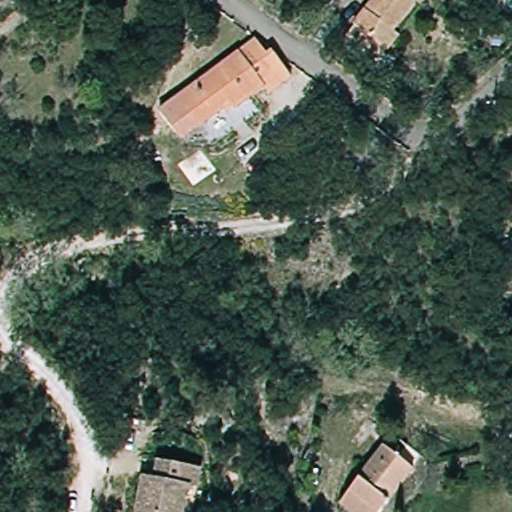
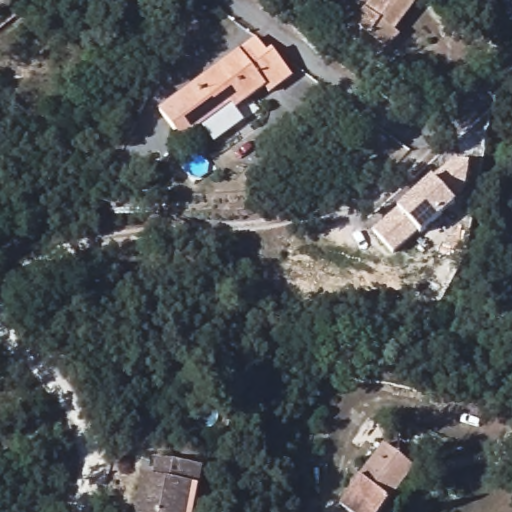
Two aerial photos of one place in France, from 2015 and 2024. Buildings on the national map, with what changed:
unchanged [(400,47),(384,60),(353,32),(383,7),(373,0),(429,0),(387,36),(400,47)]
unchanged [(238,46),(252,57),(259,51),(286,77),(283,80),(256,100),(246,90),(220,112),(214,106),(186,135),(165,112),(238,46)]
new [(423,238),(419,234),(394,257),(372,232),(398,212),(432,181),(452,162),(469,164),(465,194),(454,205),(457,207),(423,238)]
unchanged [(416,467),(385,512),(358,512),(345,502),(385,444),(416,467)]
unchanged [(191,461),(190,512),(133,512),(134,480),(146,480),(145,458),(191,461)]

